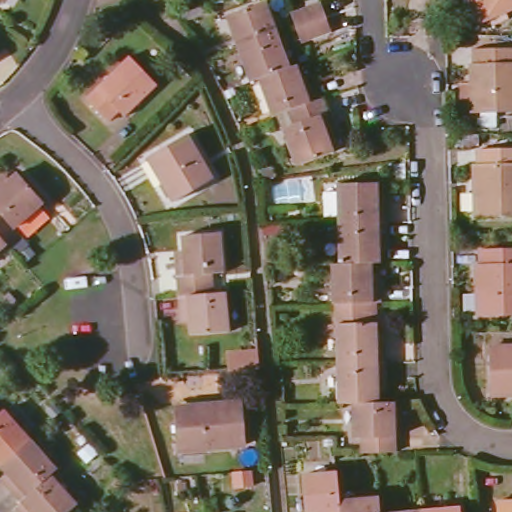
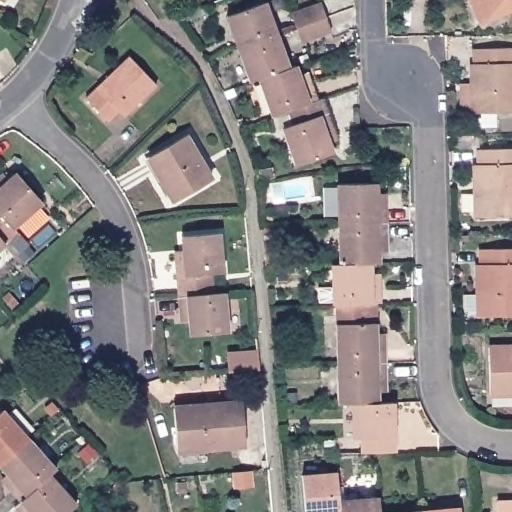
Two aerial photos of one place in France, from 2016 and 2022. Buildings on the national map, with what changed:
unchanged [(486,22),(477,0),(512,0),(512,10),(486,22)]
unchanged [(302,43),(297,29),(292,15),(322,4),(327,18),(333,33),(302,43)]
unchanged [(235,55),(223,22),(262,9),(273,41),(235,55)]
unchanged [(273,41),(285,74),(255,84),(246,87),(235,55),(273,41)]
unchanged [(474,65),(477,65),(476,50),(512,49),(512,114),(475,114),(474,65)]
unchanged [(87,99),(130,59),(156,86),(124,118),(119,113),(110,123),(87,99)]
unchanged [(285,74),(291,71),(299,89),(306,86),(314,107),(285,117),(269,123),(255,84),(285,74)]
unchanged [(314,107),(318,105),(331,138),(323,141),(329,158),(292,171),(280,135),(290,130),(285,117),(314,107)]
unchanged [(148,160),(186,137),(212,183),(175,204),(148,160)]
unchanged [(475,166),(480,165),(479,151),(512,150),(512,218),(477,219),(475,166)]
unchanged [(37,197),(7,223),(12,228),(0,237),(0,179),(12,170),(37,197)]
unchanged [(333,187),(374,185),(374,201),(382,201),(382,223),(334,224),(333,187)]
unchanged [(382,223),(384,243),(375,243),(375,263),(367,263),(335,264),(334,224),(382,223)]
unchanged [(180,298),(177,258),(185,257),(182,237),(220,234),(224,275),(212,276),(213,295),(180,298)]
unchanged [(0,240),(0,238),(1,239),(0,240)]
unchanged [(478,267),(482,266),(481,251),(512,250),(512,318),(480,319),(478,267)]
unchanged [(335,264),(367,263),(367,284),(375,284),(376,303),(371,303),(330,304),(329,304),(327,265),(335,264)]
unchanged [(213,295),(225,294),(229,335),(192,338),(190,319),(182,320),(180,298),(213,295)]
unchanged [(371,303),(372,345),(380,345),(380,363),(332,364),(330,304),(371,303)]
unchanged [(490,397),(490,349),(512,348),(512,396),(490,397)]
unchanged [(230,374),(229,356),(257,353),(259,371),(230,374)]
unchanged [(380,363),(382,384),(372,385),(373,403),(348,404),(334,405),(332,364),(380,363)]
unchanged [(175,409),(242,403),(245,447),(179,452),(175,409)]
unchanged [(373,403),(390,403),(391,454),(372,454),(357,455),(358,440),(350,441),(348,404),(373,403)]
unchanged [(29,436),(0,461),(0,407),(2,406),(29,436)]
unchanged [(55,465),(50,471),(20,497),(7,482),(12,476),(0,463),(0,461),(29,436),(55,465)]
unchanged [(320,512),(306,512),(303,472),(337,469),(340,497),(340,510),(341,512),(327,512),(320,512)]
unchanged [(50,471),(77,501),(64,512),(22,512),(14,503),(20,497),(50,471)]
unchanged [(340,497),(380,493),(382,511),(382,512),(341,512),(340,510),(340,497)]
unchanged [(499,512),(499,501),(512,501),(512,512),(499,512)]
unchanged [(462,505),(463,512),(422,512),(422,508),(462,505)]
unchanged [(422,508),(422,512),(382,512),(382,511),(422,508)]

